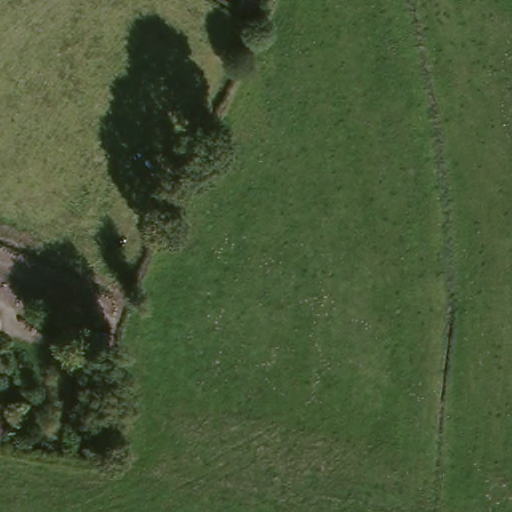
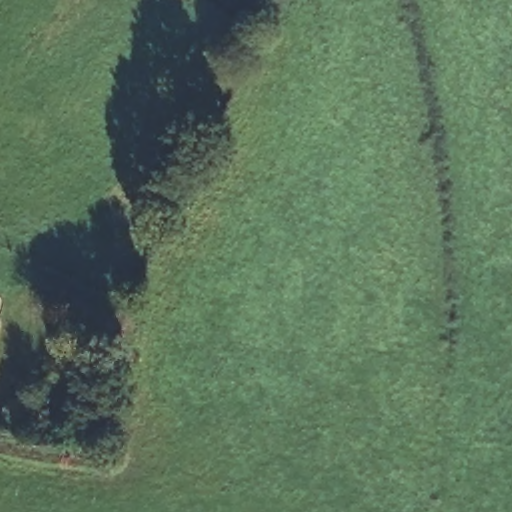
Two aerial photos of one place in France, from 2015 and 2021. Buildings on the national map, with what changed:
unchanged [(239,7),(242,0),(250,0),(260,5),(255,15),(239,7)]

